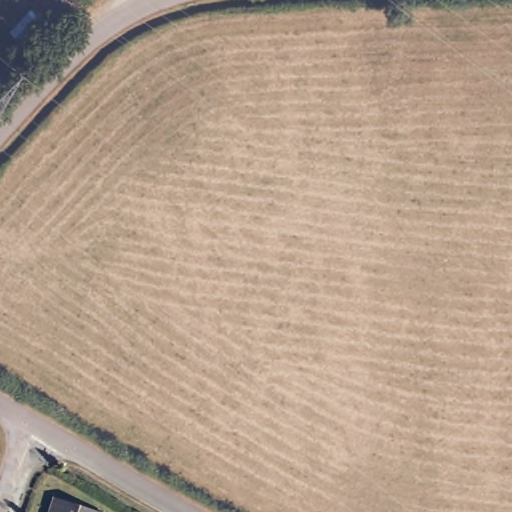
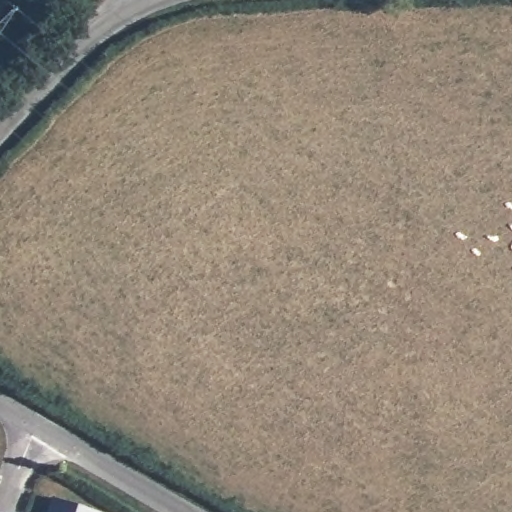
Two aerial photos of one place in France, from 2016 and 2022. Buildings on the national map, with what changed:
unchanged [(96,512),(45,512),(50,498),(96,512)]

